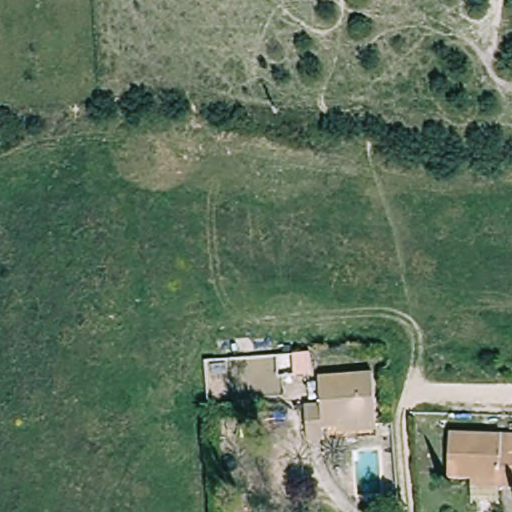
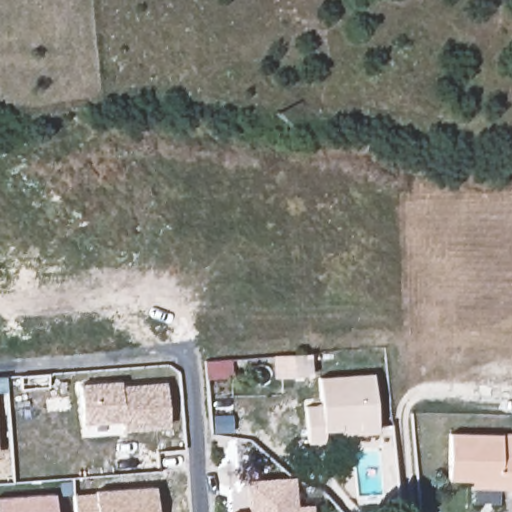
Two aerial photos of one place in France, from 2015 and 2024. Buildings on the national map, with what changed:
unchanged [(316,424),(316,395),(324,396),(326,372),(379,377),(374,428),(316,424)]
new [(121,420),(81,423),(78,384),(120,381),(121,385),(166,382),(168,426),(123,431),(121,420)]
unchanged [(316,395),(316,424),(374,428),(373,441),(315,436),(304,435),(309,395),(312,395),(316,395)]
unchanged [(504,441),(504,462),(512,462),(512,487),(501,486),(501,479),(452,478),(453,440),(504,441)]
new [(244,477),(293,474),(295,502),(311,501),(311,512),(231,512),(246,509),(244,477)]
new [(94,489),(154,486),(156,512),(74,512),(73,495),(94,492),(94,489)]
new [(55,512),(0,512),(0,498),(53,493),(55,512)]

